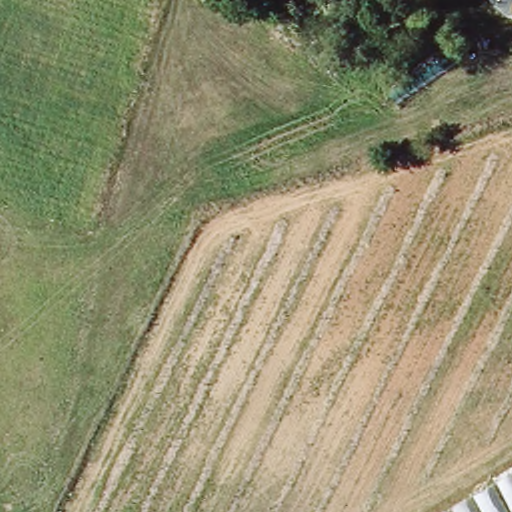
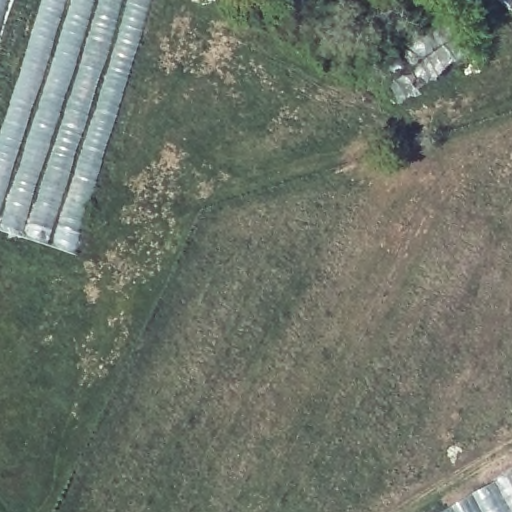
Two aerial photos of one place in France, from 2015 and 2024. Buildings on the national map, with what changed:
demolished [(92,220),(0,190),(0,0),(160,0),(92,220)]
unchanged [(502,0),(512,0),(512,7),(502,0)]
unchanged [(449,512),(512,474),(512,512),(449,512)]

